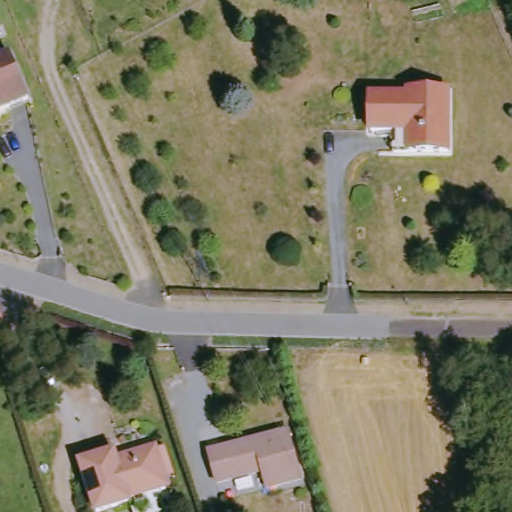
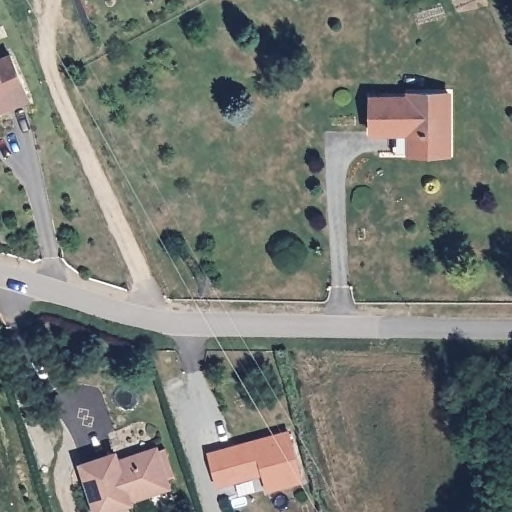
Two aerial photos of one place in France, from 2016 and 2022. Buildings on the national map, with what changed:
unchanged [(0,58),(9,54),(25,92),(28,99),(0,111),(0,58)]
unchanged [(410,96),(410,93),(449,94),(449,155),(399,155),(399,133),(372,131),(371,96),(410,96)]
unchanged [(266,474),(221,485),(213,452),(291,430),(306,481),(271,490),(266,474)]
unchanged [(98,511),(80,460),(113,450),(116,459),(154,448),(173,505),(153,512),(132,512),(128,502),(98,511)]

